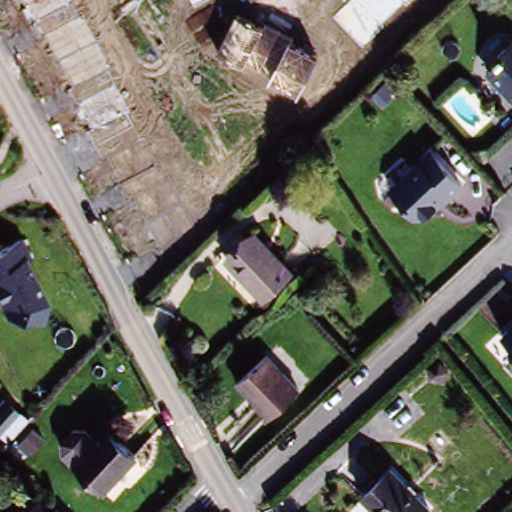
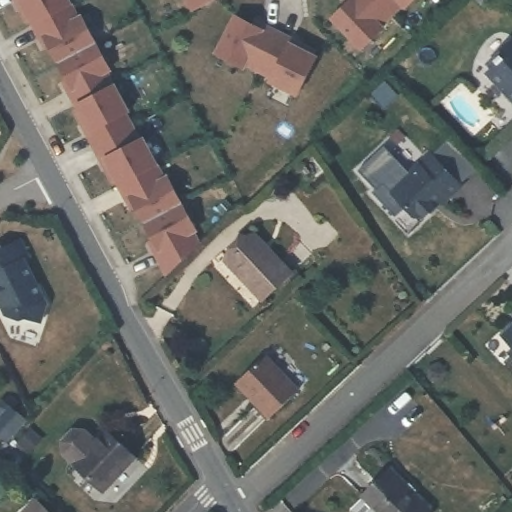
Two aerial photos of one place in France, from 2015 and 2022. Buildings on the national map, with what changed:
new [(73,6),(79,16),(83,14),(115,73),(111,75),(116,82),(132,111),(127,116),(139,138),(144,136),(160,165),(157,167),(164,176),(168,174),(199,231),(196,234),(203,245),(165,277),(145,240),(149,235),(134,206),(132,210),(117,183),(112,186),(72,111),(76,108),(59,78),(63,74),(48,45),(44,48),(30,21),(25,23),(13,0),(73,0),(76,4),(73,6)]
new [(186,0),(210,0),(192,11),(186,0)]
new [(401,7),(382,24),(385,28),(361,51),(329,17),(343,4),(340,0),(416,0),(406,11),(401,7)]
unchanged [(235,18),(262,31),(318,58),(297,98),(268,85),(273,76),(245,62),(243,67),(217,55),(235,18)]
unchanged [(509,85),(501,85),(493,76),(493,67),(503,59),(501,52),(512,43),(512,97),(509,94),(509,85)]
new [(392,186),(408,205),(397,215),(373,190),(378,186),(362,169),(386,147),(408,172),(392,186)]
unchanged [(444,202),(439,202),(427,213),(414,212),(392,186),(432,151),(462,186),(444,202)]
unchanged [(225,263),(254,236),(290,277),(261,304),(225,263)]
unchanged [(0,307),(0,249),(22,239),(30,259),(27,260),(51,304),(42,324),(6,315),(0,307)]
unchanged [(512,344),(502,331),(512,321),(512,354),(507,348),(512,344)]
unchanged [(264,423),(234,388),(264,360),(295,394),(264,423)]
unchanged [(102,434),(134,465),(104,495),(61,452),(61,441),(72,430),(83,430),(95,442),(102,434)]
unchanged [(365,501),(397,471),(432,512),(374,512),(365,501)]
unchanged [(37,497),(52,512),(26,512),(37,497)]

